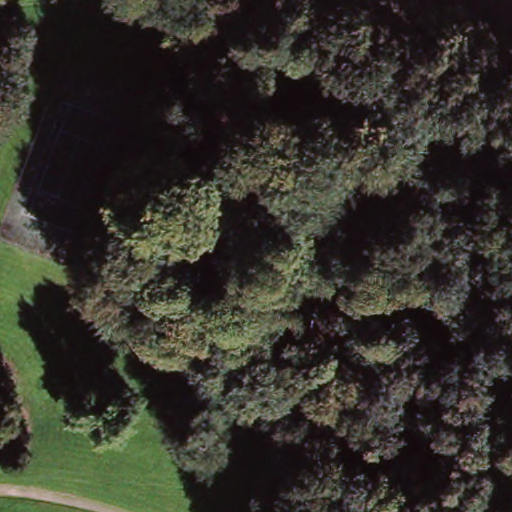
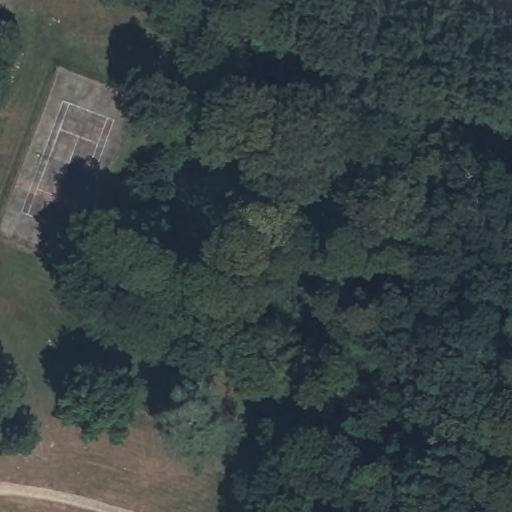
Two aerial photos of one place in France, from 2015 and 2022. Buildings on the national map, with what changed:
[]

